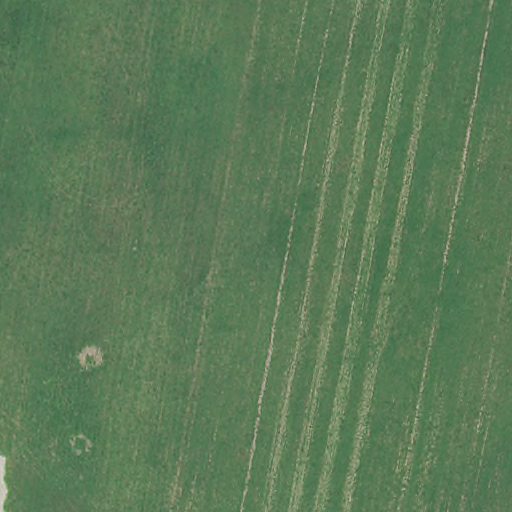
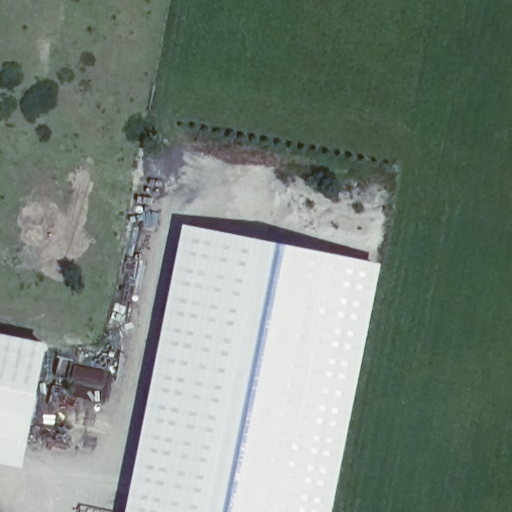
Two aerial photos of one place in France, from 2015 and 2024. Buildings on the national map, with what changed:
new [(326,512),(122,512),(179,224),(376,264),(326,512)]
new [(44,345),(23,472),(0,468),(0,335),(44,345)]

